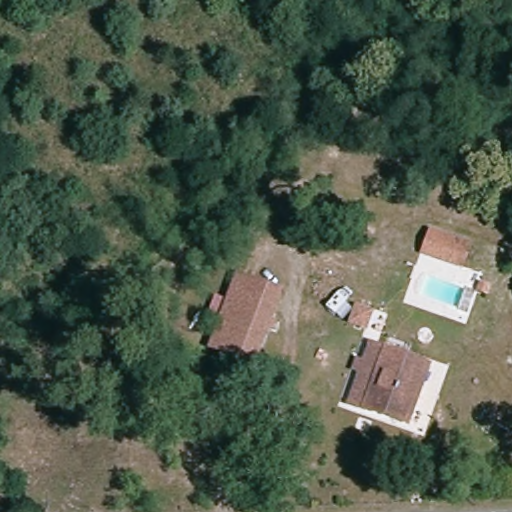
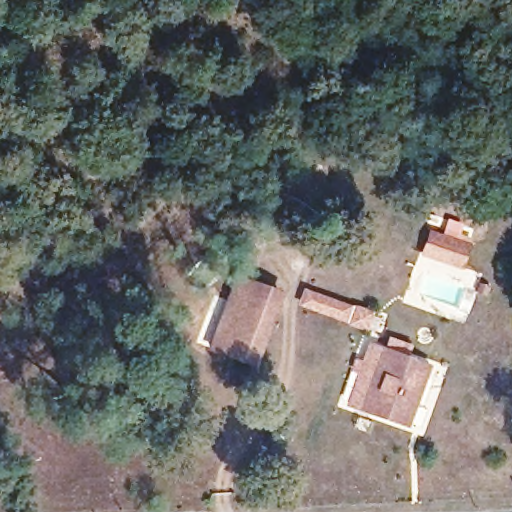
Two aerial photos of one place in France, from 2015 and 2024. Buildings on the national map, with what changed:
unchanged [(421,255),(432,232),(463,247),(451,270),(421,255)]
unchanged [(277,301),(252,368),(209,348),(231,285),(277,301)]
new [(304,286),(354,306),(373,312),(367,332),(347,325),(296,307),(304,286)]
unchanged [(358,405),(376,351),(418,367),(401,423),(358,405)]

